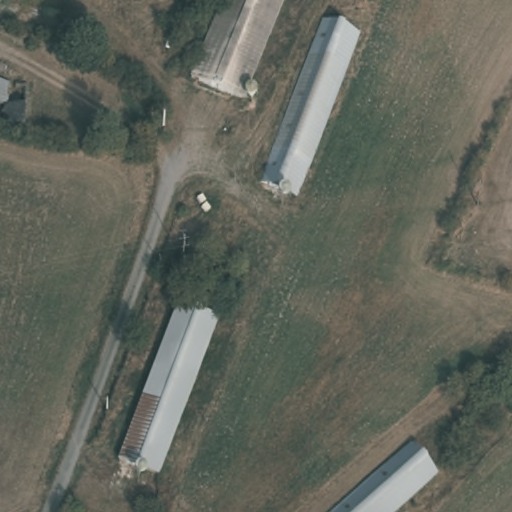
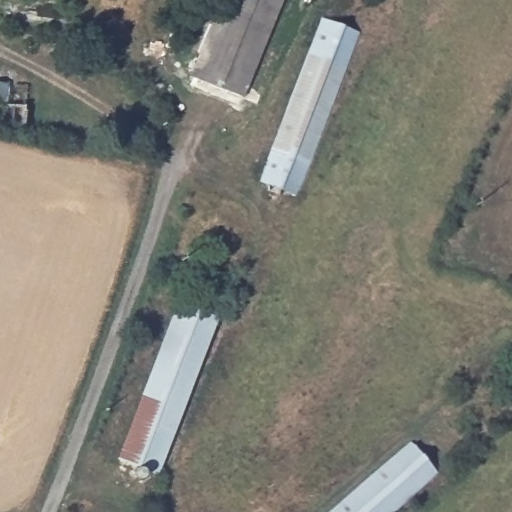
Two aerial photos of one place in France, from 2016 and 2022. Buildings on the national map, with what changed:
unchanged [(222,0),(288,0),(248,99),(191,77),(222,0)]
unchanged [(300,195),(264,183),(327,20),(363,32),(300,195)]
unchanged [(27,125),(7,125),(12,87),(30,88),(27,125)]
unchanged [(161,477),(120,462),(183,307),(224,322),(161,477)]
unchanged [(438,472),(392,512),(338,512),(416,446),(438,472)]

